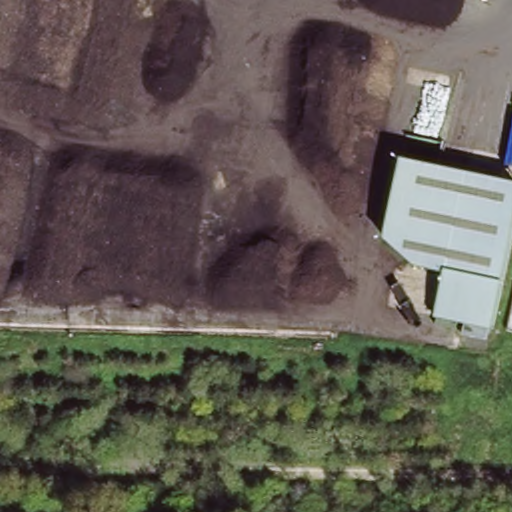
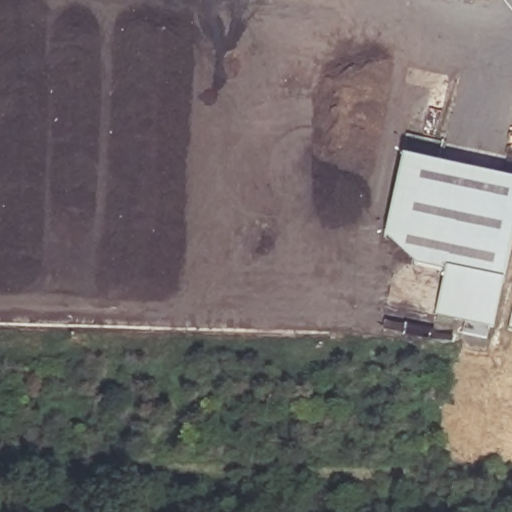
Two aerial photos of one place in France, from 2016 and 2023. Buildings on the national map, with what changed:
unchanged [(497,326),(439,315),(447,270),(416,261),(389,231),(405,159),(512,182),(512,249),(497,326)]

